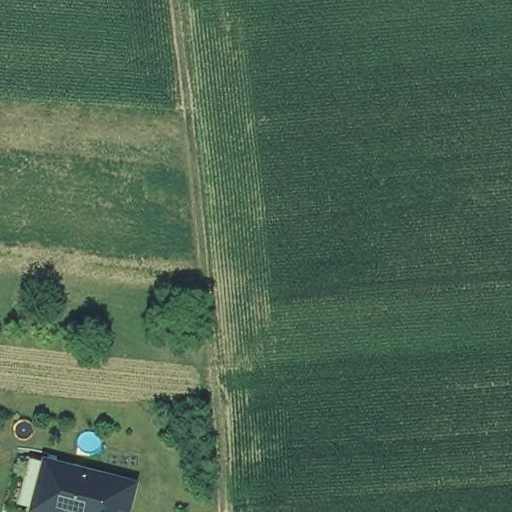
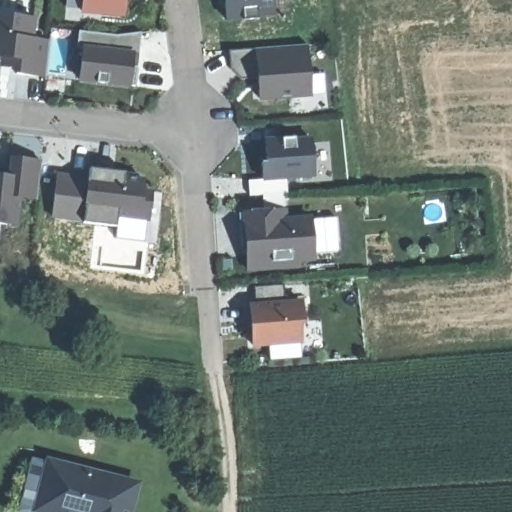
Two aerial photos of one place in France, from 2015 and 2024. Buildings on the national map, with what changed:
new [(124,0),(123,16),(82,12),(83,0),(124,0)]
new [(226,23),(223,0),(272,0),(274,17),(226,23)]
new [(28,19),(26,40),(44,42),(39,78),(35,78),(11,75),(11,70),(4,69),(0,68),(0,16),(28,19)]
new [(117,36),(141,33),(138,56),(133,55),(131,67),(138,68),(135,87),(79,81),(83,50),(76,49),(78,31),(117,36)]
new [(258,79),(241,81),(230,70),(228,51),(308,46),(308,47),(306,47),(309,96),(259,99),(258,79)]
new [(263,181),(261,163),(267,163),(266,141),(294,139),(294,141),(311,140),(314,177),(263,181)]
new [(9,173),(11,154),(41,158),(37,195),(20,193),(18,222),(0,220),(0,219),(0,172),(9,173)]
new [(88,174),(89,169),(113,172),(136,175),(134,180),(143,181),(142,192),(151,193),(148,221),(117,218),(116,228),(115,228),(83,224),(83,221),(52,218),(57,176),(88,179),(88,174)]
new [(241,245),(239,214),(284,211),(285,221),(311,219),(314,260),(298,261),(299,267),(248,271),(246,255),(241,255),(241,245)]
new [(250,306),(255,306),(253,287),(284,285),(285,304),(301,303),(303,323),(299,323),(301,343),(253,346),(251,324),(250,306)]
new [(47,508),(46,512),(35,512),(27,510),(31,492),(38,465),(40,455),(58,459),(143,481),(146,482),(138,511),(138,512),(64,512),(47,508)]
demolished [(48,458),(138,480),(131,512),(36,512),(48,458)]

